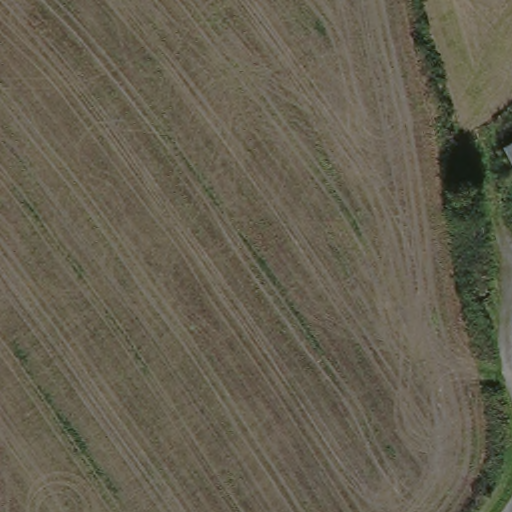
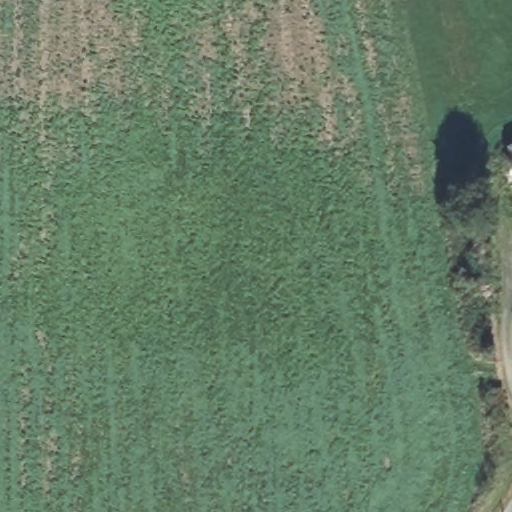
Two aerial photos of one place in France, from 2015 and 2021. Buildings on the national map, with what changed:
unchanged [(512,141),(512,153),(507,144),(512,141)]

